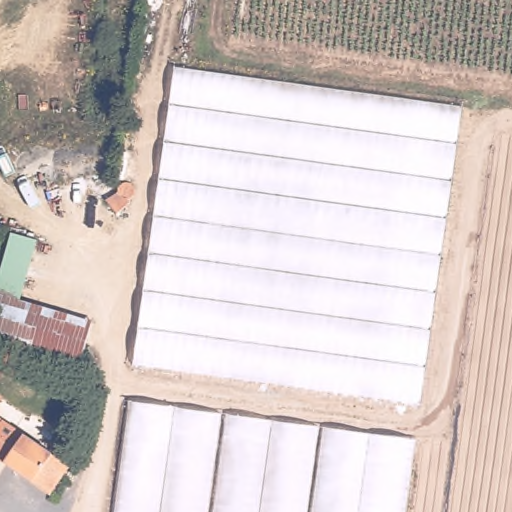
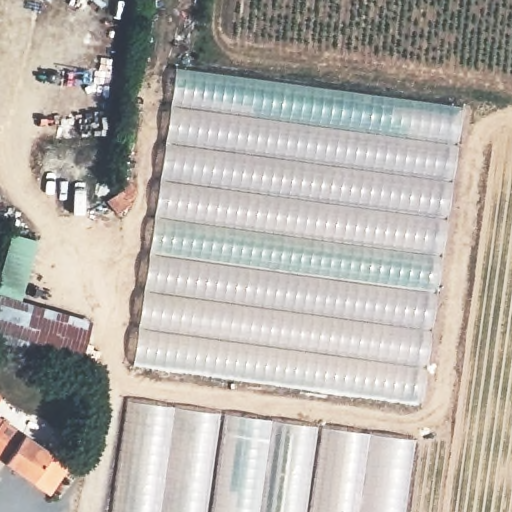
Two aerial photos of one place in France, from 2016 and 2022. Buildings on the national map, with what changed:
unchanged [(172,67),(460,107),(418,410),(131,368),(172,67)]
unchanged [(0,340),(0,275),(11,232),(37,239),(21,299),(91,321),(80,361),(0,340)]
unchanged [(0,403),(0,392),(5,396),(0,403)]
unchanged [(406,512),(113,512),(129,397),(416,435),(406,512)]
unchanged [(34,480),(0,456),(0,406),(6,410),(2,415),(54,452),(72,465),(52,493),(34,480)]

